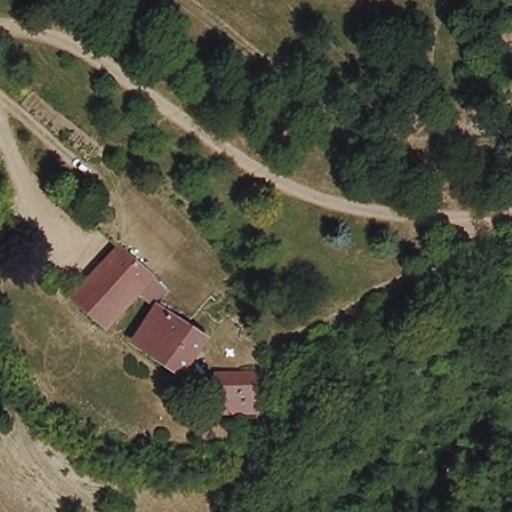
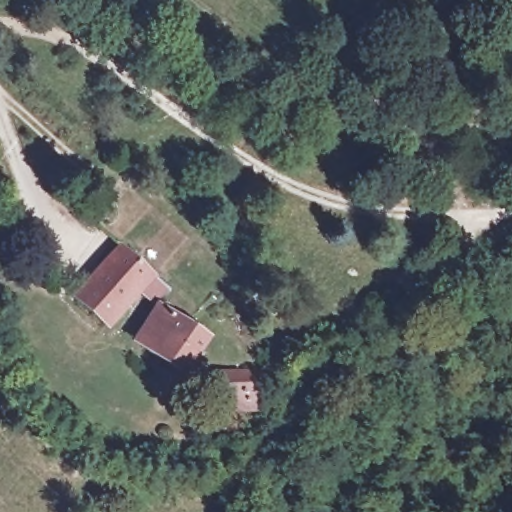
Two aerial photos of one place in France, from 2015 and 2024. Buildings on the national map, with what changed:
unchanged [(129,244),(166,278),(111,335),(74,304),(129,244)]
unchanged [(215,341),(178,390),(128,353),(166,310),(215,341)]
unchanged [(220,422),(215,403),(211,385),(234,378),(254,373),(264,409),(220,422)]

